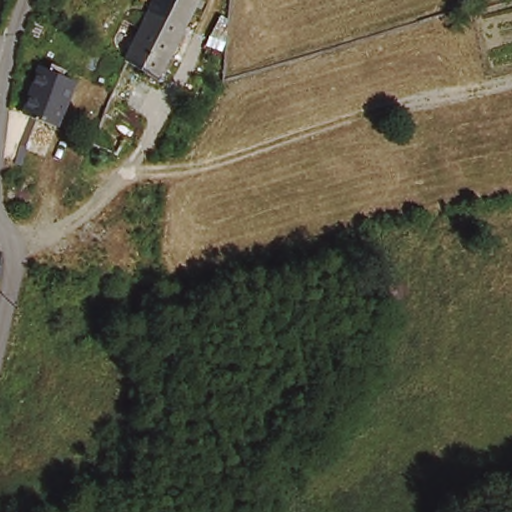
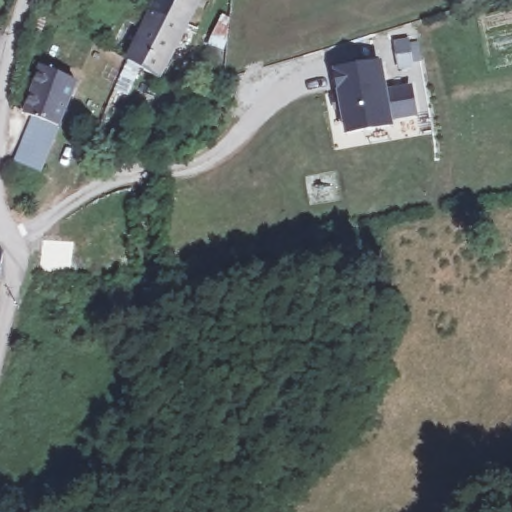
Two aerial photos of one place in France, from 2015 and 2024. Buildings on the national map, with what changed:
unchanged [(193,0),(183,21),(156,8),(160,0),(193,0)]
unchanged [(156,8),(183,21),(154,75),(127,61),(156,8)]
new [(417,118),(393,120),(394,128),(344,135),(334,71),(383,61),(388,90),(412,85),(417,118)]
unchanged [(44,70),(73,81),(55,129),(26,118),(44,70)]
new [(41,239),(73,242),(70,274),(39,272),(41,239)]
unchanged [(6,257),(3,281),(0,281),(0,253),(5,253),(6,257)]

